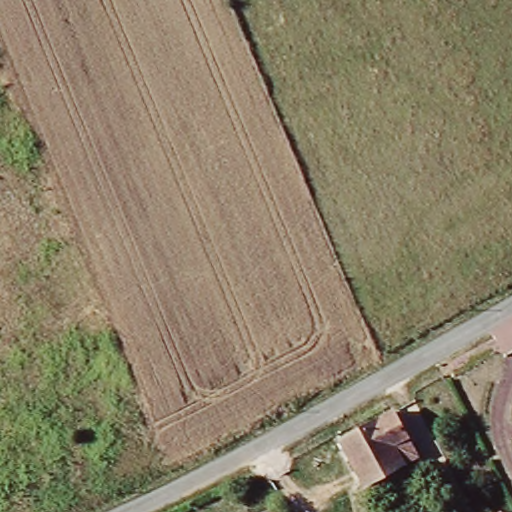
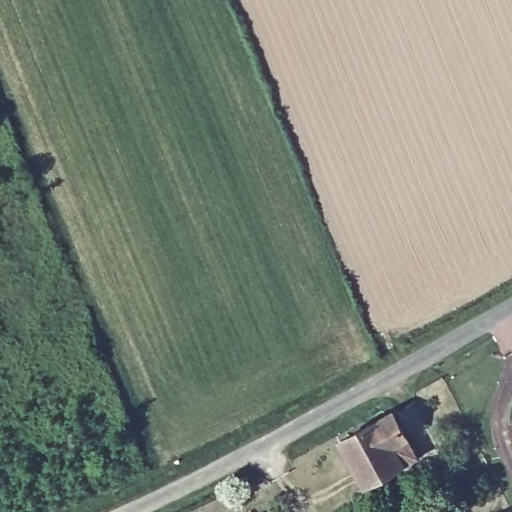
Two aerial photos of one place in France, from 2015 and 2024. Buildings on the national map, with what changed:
unchanged [(420,453),(372,482),(346,440),(394,411),(420,453)]

